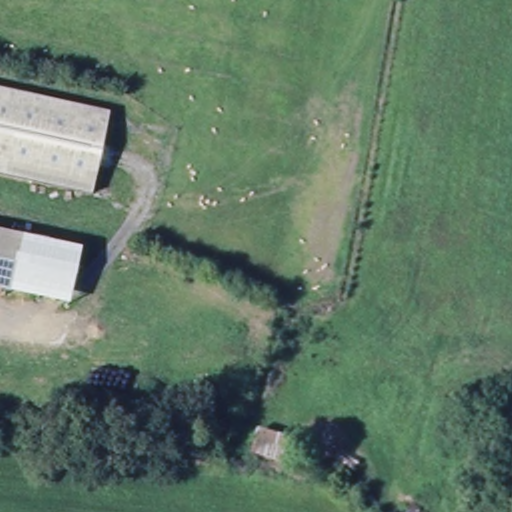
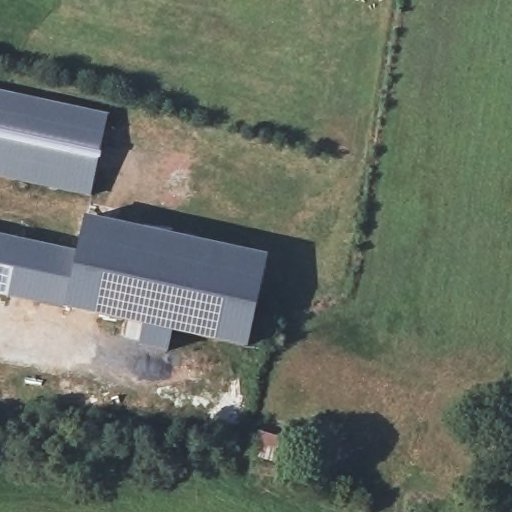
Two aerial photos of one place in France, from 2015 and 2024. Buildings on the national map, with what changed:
unchanged [(108,118),(89,197),(0,176),(0,91),(108,118)]
new [(87,217),(271,256),(250,349),(174,333),(170,354),(140,348),(146,326),(66,310),(71,288),(79,254),(87,217)]
unchanged [(79,254),(66,310),(0,296),(0,236),(79,254)]
unchanged [(307,441),(300,471),(249,459),(261,429),(307,441)]

